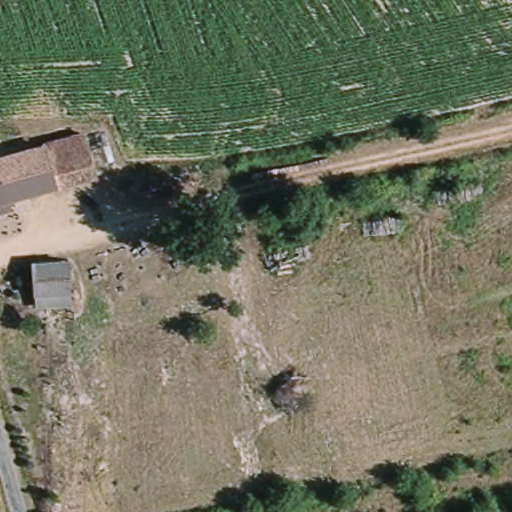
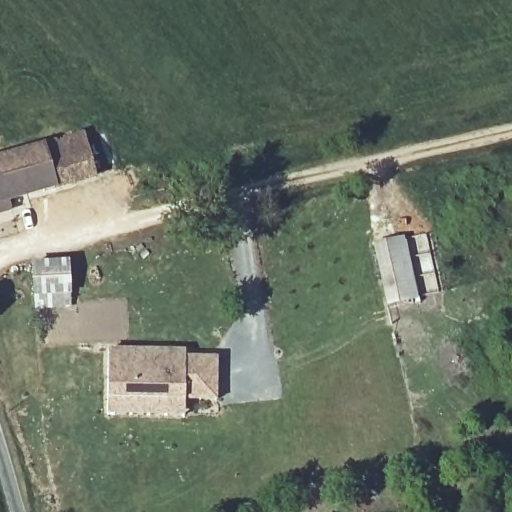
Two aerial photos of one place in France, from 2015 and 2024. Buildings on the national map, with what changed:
unchanged [(0,157),(83,134),(93,173),(7,199),(9,210),(0,213),(0,157)]
unchanged [(135,185),(174,168),(182,182),(187,192),(146,209),(139,192),(135,185)]
new [(374,244),(404,237),(417,300),(387,306),(374,244)]
unchanged [(34,310),(32,264),(64,262),(69,309),(34,310)]
new [(108,348),(186,348),(185,356),(218,356),(218,401),(184,401),(183,417),(108,415),(108,348)]

